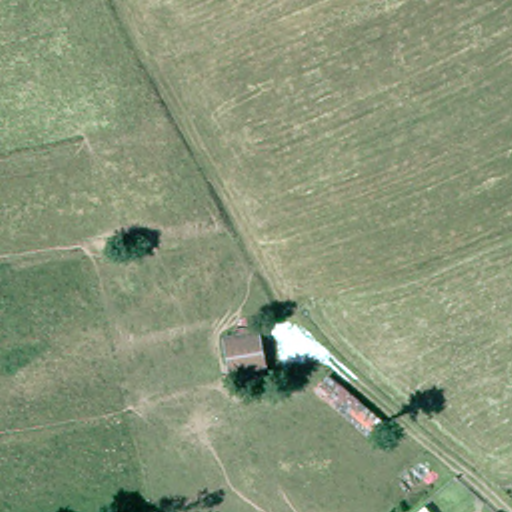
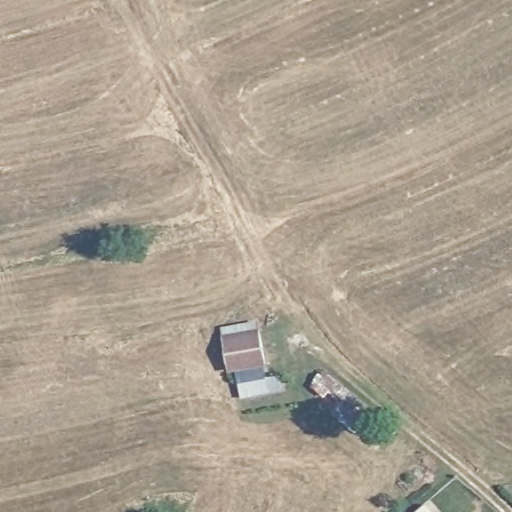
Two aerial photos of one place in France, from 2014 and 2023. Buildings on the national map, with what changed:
unchanged [(235,375),(231,343),(265,338),(270,370),(235,375)]

